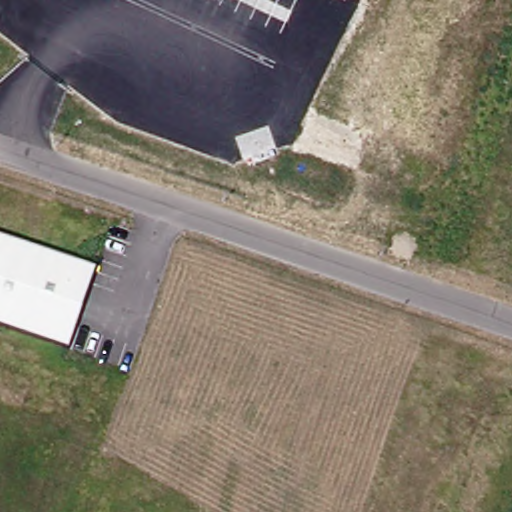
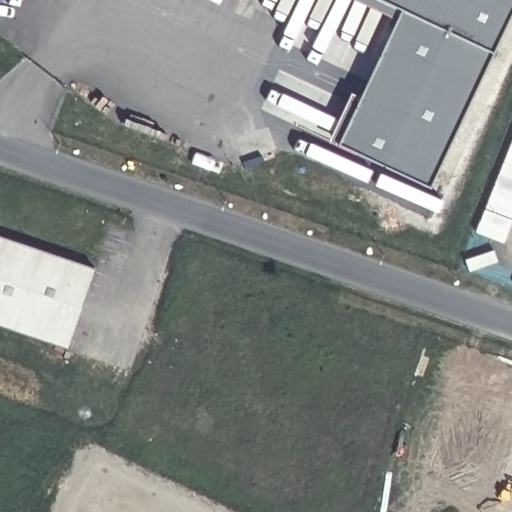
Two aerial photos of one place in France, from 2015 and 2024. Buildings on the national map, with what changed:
new [(432,188),(331,142),(352,94),(362,97),(397,22),(348,0),(512,0),(512,17),(432,188)]
unchanged [(0,320),(0,239),(95,271),(71,344),(0,320)]

